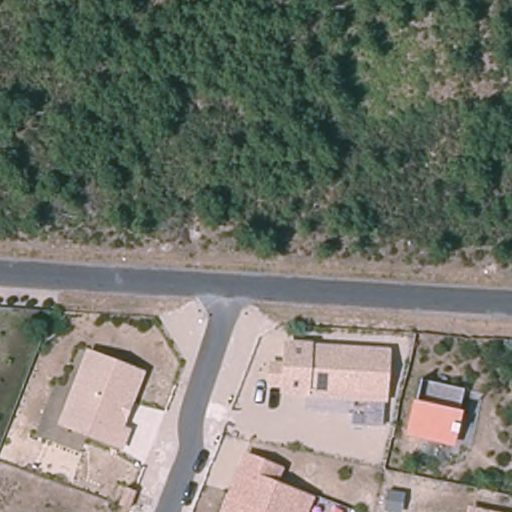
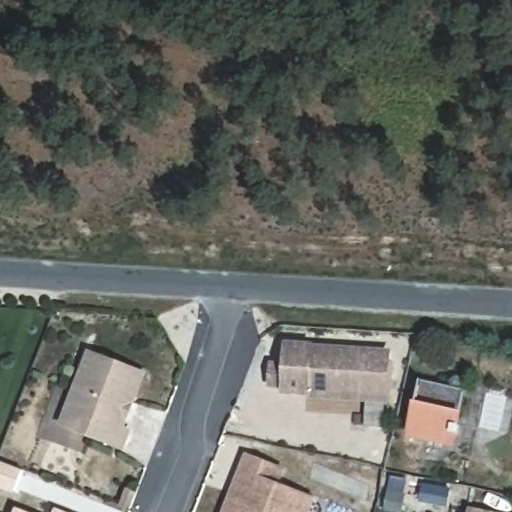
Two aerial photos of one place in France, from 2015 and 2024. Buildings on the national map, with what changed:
unchanged [(387,424),(366,424),(367,398),(279,393),(280,387),(270,386),(271,358),(281,359),(283,337),(311,340),(311,344),(393,349),(387,424)]
unchanged [(68,408),(91,353),(144,375),(130,406),(125,418),(121,430),(127,433),(120,448),(73,428),(62,424),(68,408)]
unchanged [(407,427),(418,380),(442,385),(461,390),(460,396),(450,444),(425,438),(406,434),(407,427)]
unchanged [(282,467),(276,482),(313,497),(307,512),(225,512),(247,453),(282,467)]
new [(0,488),(0,461),(23,470),(14,493),(0,488)]
unchanged [(141,501),(136,512),(123,512),(130,496),(141,501)]
new [(26,512),(15,512),(16,508),(26,512)]
new [(66,512),(57,512),(59,509),(66,512)]
unchanged [(472,512),(469,512),(470,511),(472,512)]

